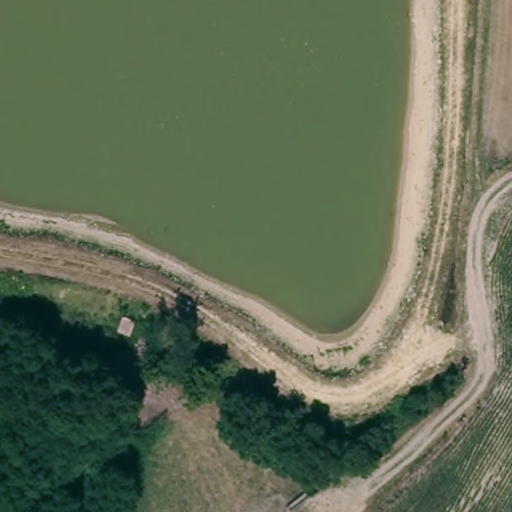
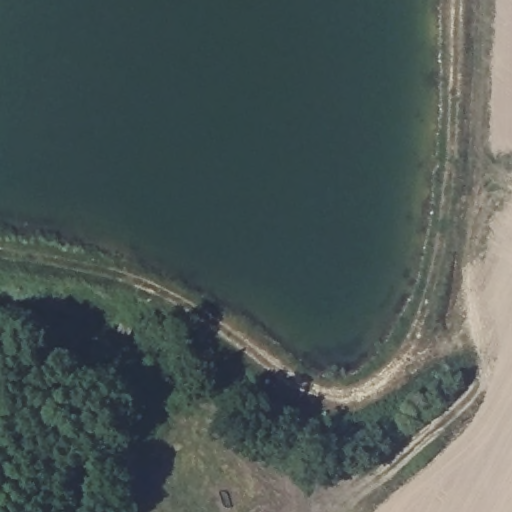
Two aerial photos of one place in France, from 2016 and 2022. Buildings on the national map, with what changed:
[]

